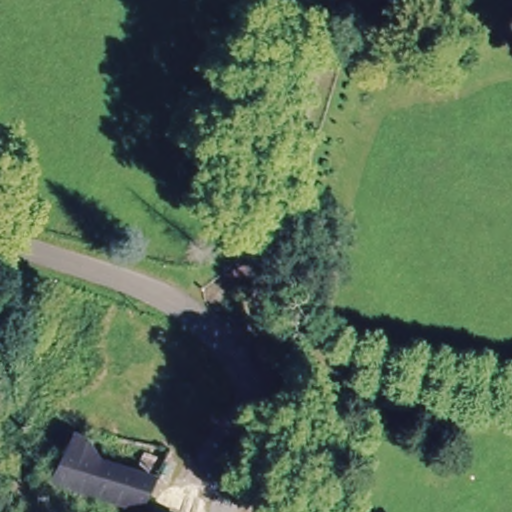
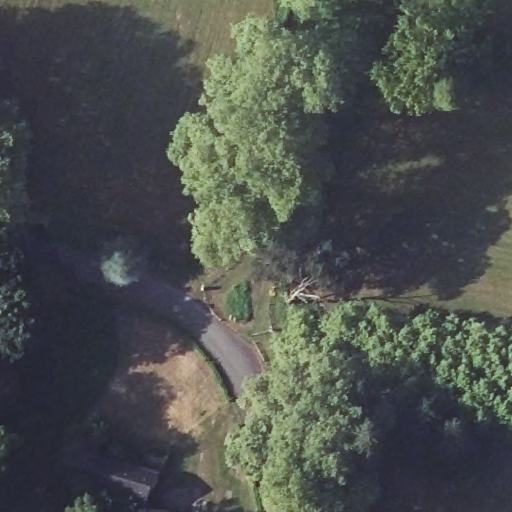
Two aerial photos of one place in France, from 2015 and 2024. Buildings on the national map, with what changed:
unchanged [(82,435),(103,460),(158,471),(147,511),(141,510),(54,485),(67,432),(82,435)]

